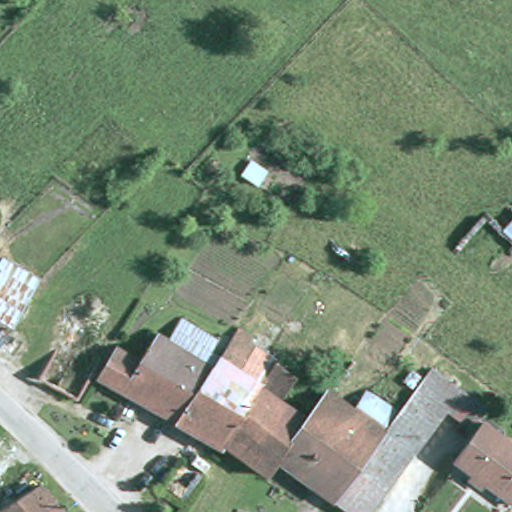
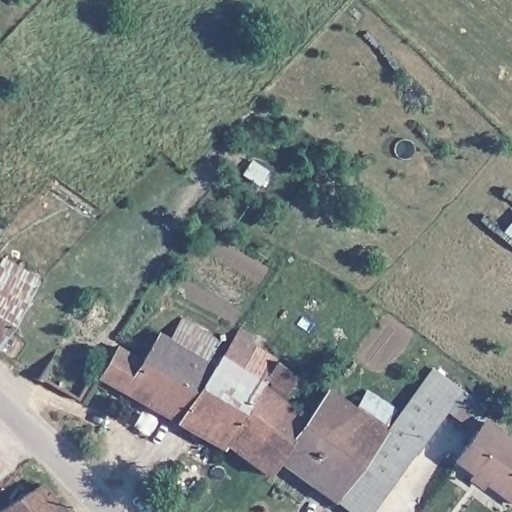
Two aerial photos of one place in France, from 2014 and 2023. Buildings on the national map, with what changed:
unchanged [(251,162),(267,172),(260,185),(242,175),(251,162)]
unchanged [(5,257),(41,281),(0,340),(0,267),(1,265),(5,257)]
unchanged [(0,267),(0,264),(1,265),(0,267)]
unchanged [(123,347),(145,361),(163,334),(175,340),(187,320),(222,342),(215,353),(225,359),(183,423),(136,396),(103,377),(123,347)]
unchanged [(225,359),(235,344),(245,330),(260,340),(256,346),(282,362),(231,446),(230,448),(183,423),(225,359)]
unchanged [(231,446),(282,362),(302,379),(286,402),(312,420),(285,462),(275,476),(231,446)]
unchanged [(467,391),(491,408),(478,428),(453,410),(420,455),(418,454),(376,512),(355,512),(337,499),(389,432),(390,433),(437,369),(467,391)]
unchanged [(420,389),(409,381),(417,369),(428,377),(420,389)]
unchanged [(360,412),(373,393),(402,412),(387,431),(389,432),(337,499),(319,486),(285,462),(312,420),(331,391),(360,412)]
unchanged [(512,441),(512,499),(461,460),(489,423),(512,441)]
unchanged [(2,507),(28,491),(34,487),(43,481),(45,480),(71,512),(5,512),(2,507)]

